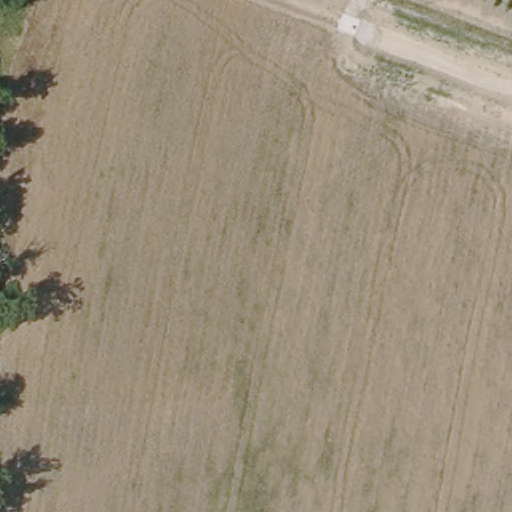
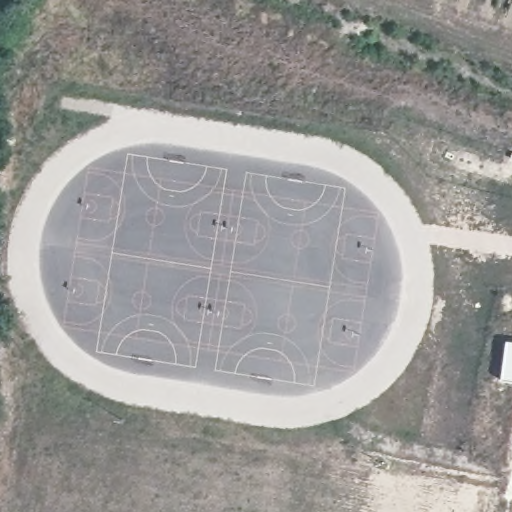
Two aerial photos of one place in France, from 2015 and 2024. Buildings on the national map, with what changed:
new [(512,341),(512,381),(501,379),(506,340),(512,341)]

